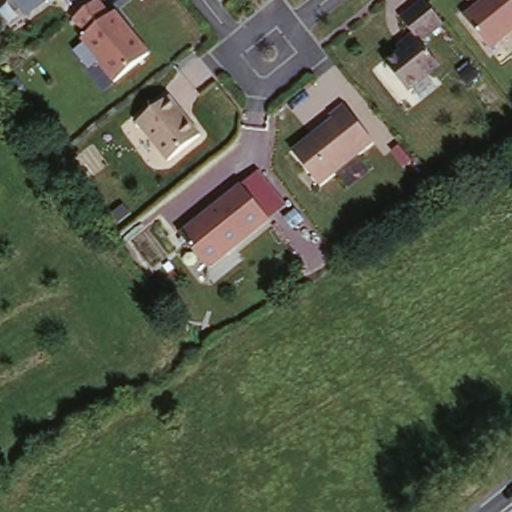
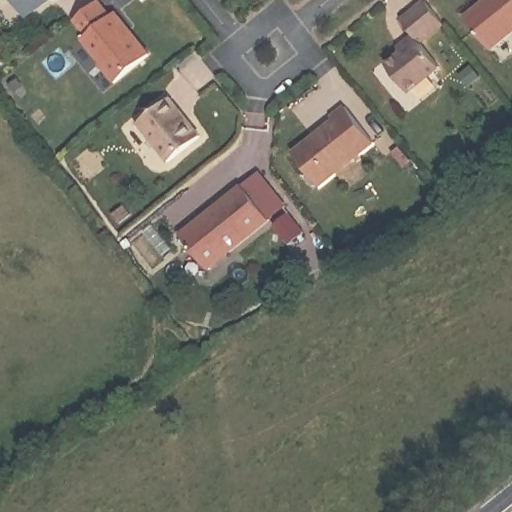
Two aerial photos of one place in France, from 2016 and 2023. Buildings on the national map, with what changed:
unchanged [(16,0),(41,0),(23,12),(16,0)]
unchanged [(101,0),(114,14),(117,11),(152,48),(114,75),(78,37),(86,29),(74,15),(100,0),(101,0)]
unchanged [(397,16),(419,0),(428,0),(447,20),(424,41),(441,63),(408,86),(381,50),(408,29),(397,16)]
unchanged [(512,0),(512,27),(489,43),(463,13),(481,0),(512,0)]
unchanged [(175,93),(204,130),(163,153),(135,120),(175,93)]
unchanged [(342,108),(371,141),(319,184),(292,146),(342,108)]
unchanged [(237,184),(269,218),(212,262),(180,227),(237,184)]

